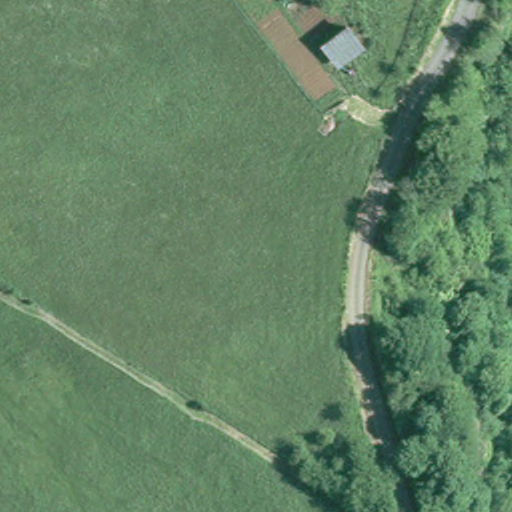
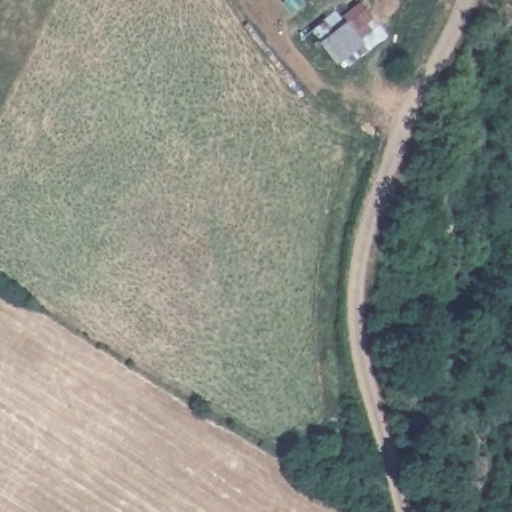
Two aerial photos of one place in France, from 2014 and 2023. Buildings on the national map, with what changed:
unchanged [(326,44),(339,31),(349,21),(366,38),(343,61),(326,44)]

